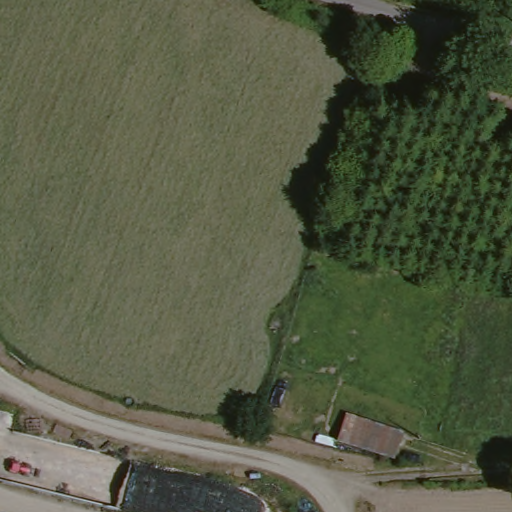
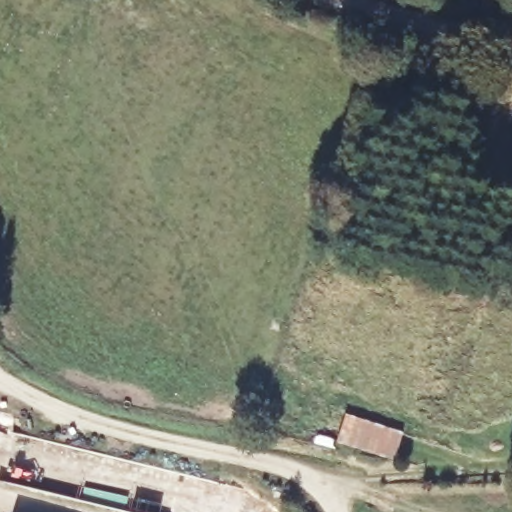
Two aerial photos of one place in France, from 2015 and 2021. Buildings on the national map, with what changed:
unchanged [(407,426),(399,456),(344,442),(349,410),(407,426)]

